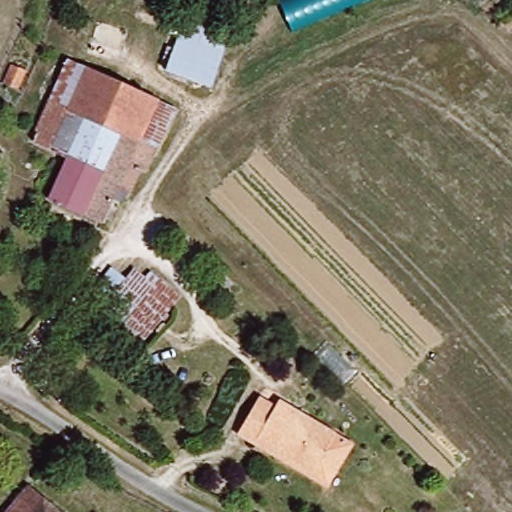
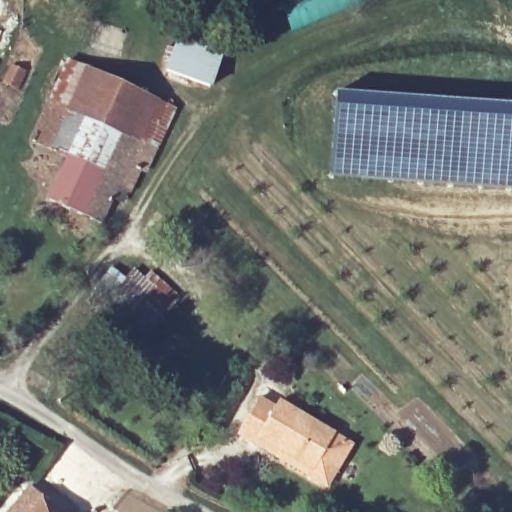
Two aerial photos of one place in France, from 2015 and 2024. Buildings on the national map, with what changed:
new [(311,19),(306,7),(296,11),(291,0),(356,0),(311,19)]
unchanged [(190,11),(232,21),(219,69),(216,82),(174,70),(178,53),(178,52),(190,11)]
unchanged [(179,104),(150,169),(141,167),(131,192),(116,185),(101,221),(48,197),(66,156),(30,140),(69,57),(179,104)]
new [(512,103),(512,187),(333,175),(340,92),(512,103)]
unchanged [(99,267),(116,278),(122,267),(140,277),(146,266),(182,289),(148,347),(73,304),(99,267)]
unchanged [(338,431),(337,432),(315,466),(262,432),(258,438),(242,427),(265,392),(281,403),(285,396),(338,431)]
unchanged [(262,432),(315,466),(337,432),(354,443),(327,483),(258,438),(262,432)]
unchanged [(68,512),(4,512),(29,481),(68,512)]
unchanged [(103,512),(87,512),(94,504),(103,512)]

